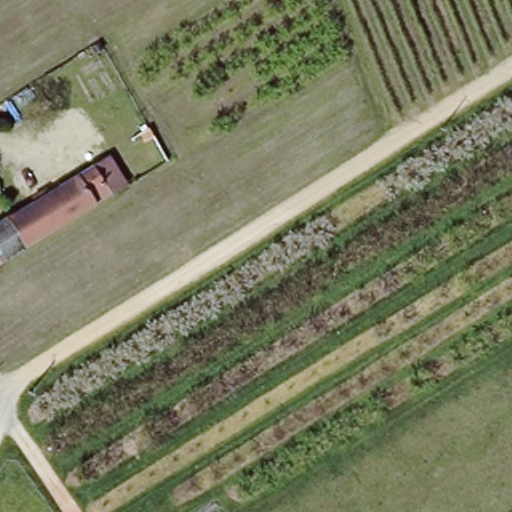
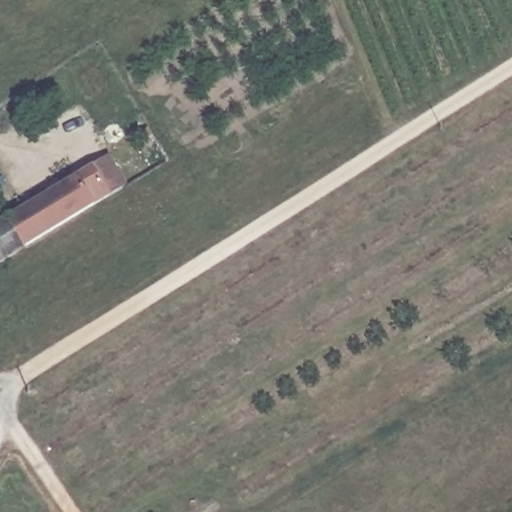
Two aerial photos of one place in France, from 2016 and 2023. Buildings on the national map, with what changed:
unchanged [(157,140),(148,145),(143,136),(151,130),(157,140)]
unchanged [(89,166),(108,196),(22,247),(21,248),(3,218),(89,166)]
unchanged [(21,248),(0,263),(0,220),(3,218),(21,248)]

